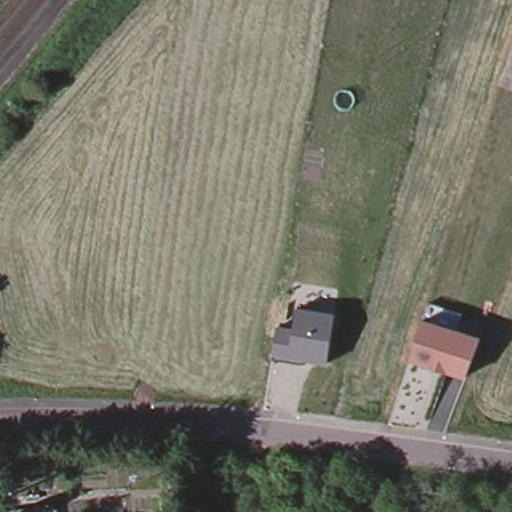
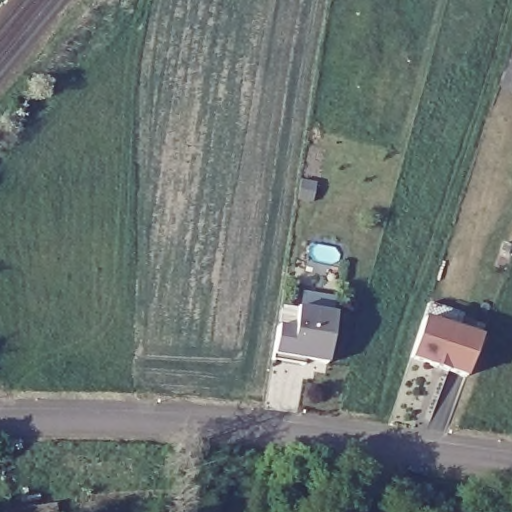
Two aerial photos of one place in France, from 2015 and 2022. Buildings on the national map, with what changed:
unchanged [(277,326),(295,328),(297,308),(335,313),(331,362),(308,360),(307,365),(272,357),(277,326)]
unchanged [(424,319),(480,336),(467,378),(410,360),(424,319)]
unchanged [(58,508),(58,512),(16,512),(58,508)]

